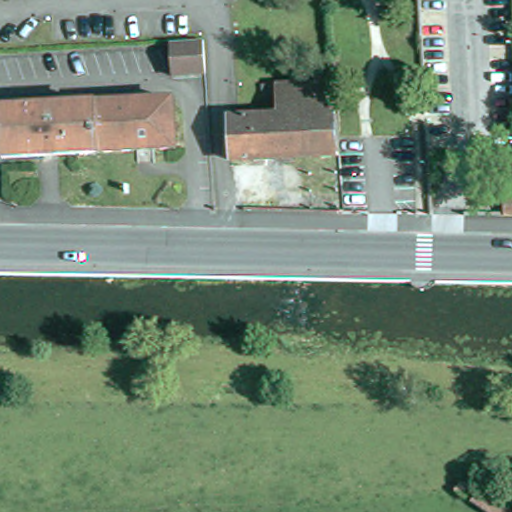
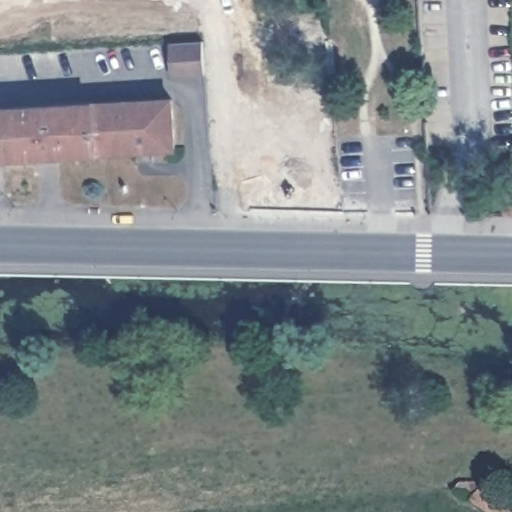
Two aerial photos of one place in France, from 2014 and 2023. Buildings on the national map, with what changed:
unchanged [(172,75),(170,43),(205,41),(207,72),(172,75)]
demolished [(227,163),(225,120),(275,118),(275,105),(260,105),(258,88),(274,87),(330,85),(331,121),(332,147),(332,158),(300,160),(227,163)]
unchanged [(3,109),(21,108),(177,101),(180,149),(25,155),(6,156),(3,109)]
unchanged [(512,194),(512,212),(507,212),(506,194),(512,194)]
unchanged [(458,486),(471,485),(482,485),(476,495),(502,512),(477,512),(452,496),(458,486)]

